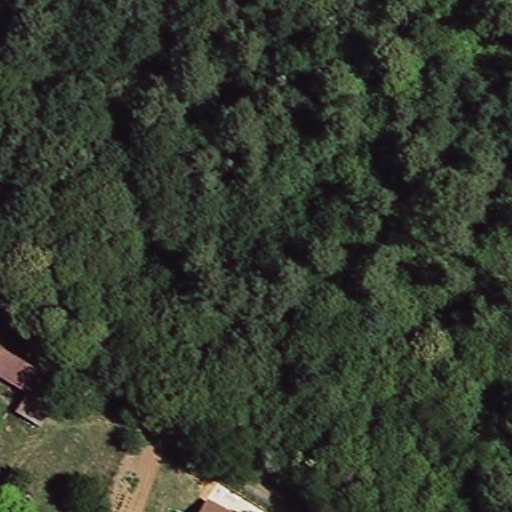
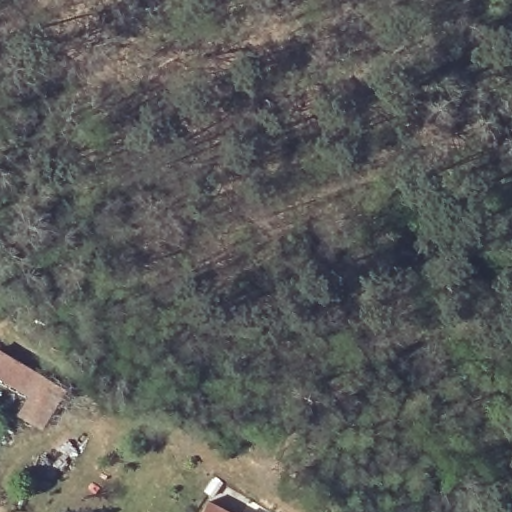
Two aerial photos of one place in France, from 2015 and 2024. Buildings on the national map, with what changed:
unchanged [(25,393),(0,380),(0,348),(68,385),(43,428),(16,412),(25,393)]
unchanged [(225,512),(201,512),(206,502),(225,512)]

